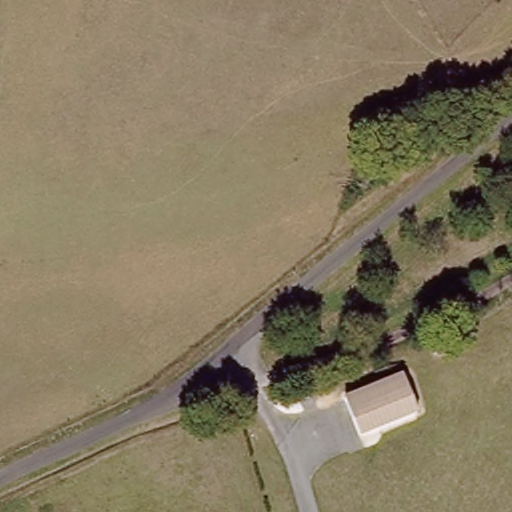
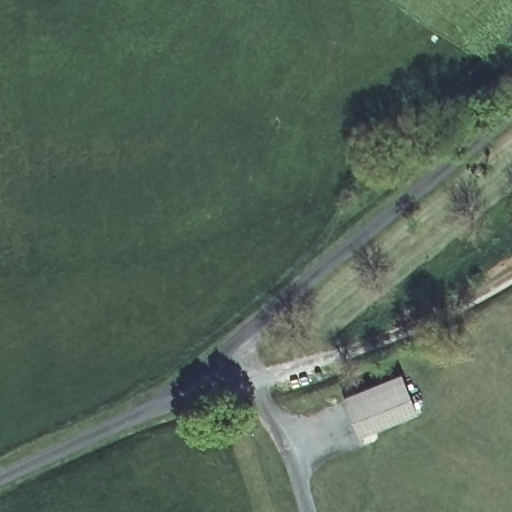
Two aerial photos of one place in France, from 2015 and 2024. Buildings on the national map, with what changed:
unchanged [(402,371),(419,413),(359,438),(343,396),(402,371)]

